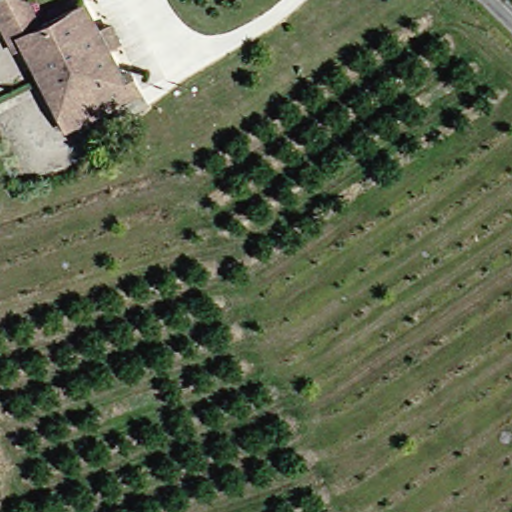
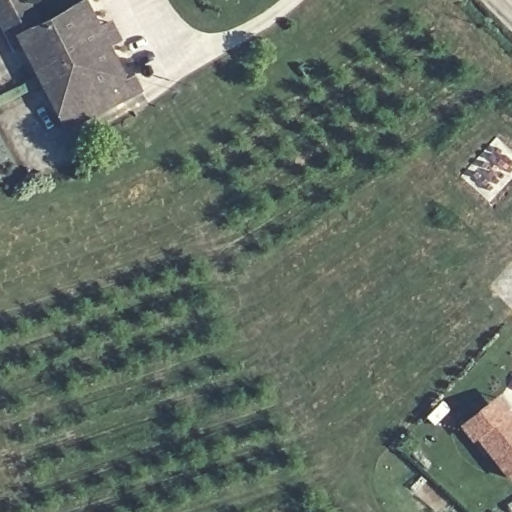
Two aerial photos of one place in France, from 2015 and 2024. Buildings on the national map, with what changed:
unchanged [(17,45),(9,49),(0,33),(0,0),(21,0),(33,24),(77,1),(92,31),(103,27),(111,43),(102,49),(119,81),(127,77),(135,91),(100,109),(60,130),(51,111),(17,45)]
new [(473,440),(462,426),(487,409),(497,420),(507,412),(512,418),(512,476),(508,479),(478,436),(473,440)]

